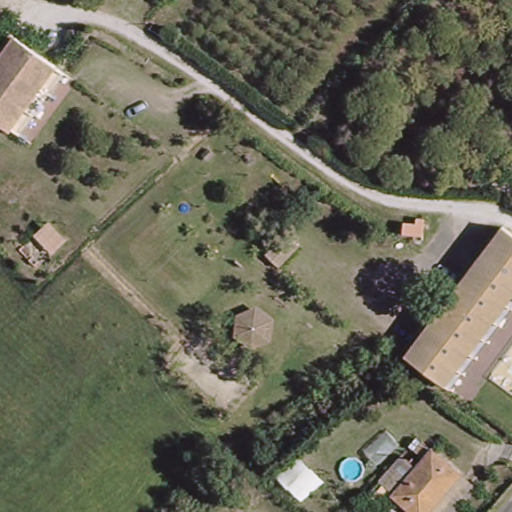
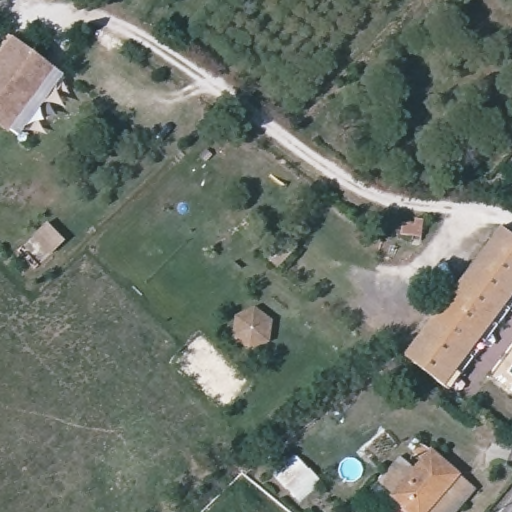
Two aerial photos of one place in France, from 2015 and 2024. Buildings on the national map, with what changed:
unchanged [(13,126),(0,116),(0,64),(18,39),(58,67),(13,126)]
unchanged [(449,384),(421,363),(418,364),(409,356),(506,223),(512,228),(512,299),(449,384)]
unchanged [(411,511),(381,486),(412,449),(403,442),(412,431),(449,464),(411,511)]
unchanged [(412,512),(411,511),(449,464),(467,478),(437,512),(412,512)]

